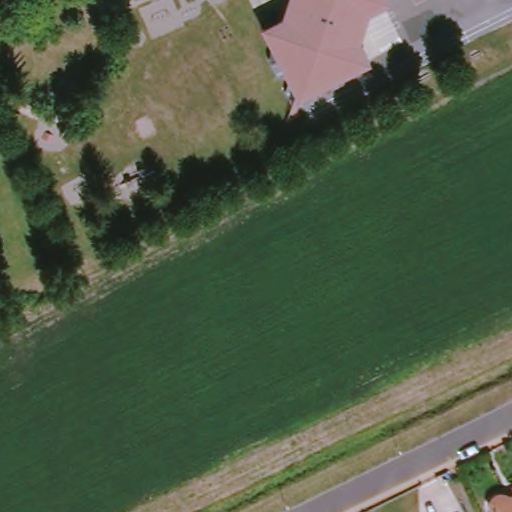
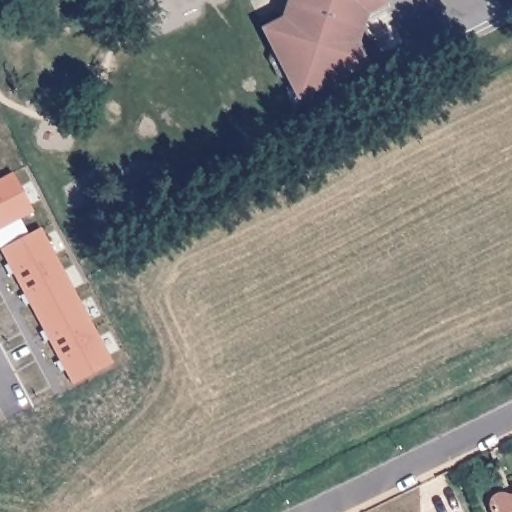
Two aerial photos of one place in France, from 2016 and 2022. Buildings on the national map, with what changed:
unchanged [(362,16),(355,38),(360,47),(348,85),(332,93),(320,90),(315,101),(299,109),(290,92),(294,81),(282,77),(274,60),(285,24),(295,19),(301,0),(375,0),(372,12),(362,16)]
new [(12,172),(34,211),(0,229),(0,180),(12,172)]
new [(40,228),(113,364),(72,385),(0,250),(40,228)]
unchanged [(493,511),(492,510),(493,509),(493,507),(494,505),(495,504),(495,503),(497,501),(499,500),(500,500),(502,500),(503,499),(505,499),(507,500),(509,500),(510,500),(512,501),(512,502),(512,512),(493,512),(493,511)]

